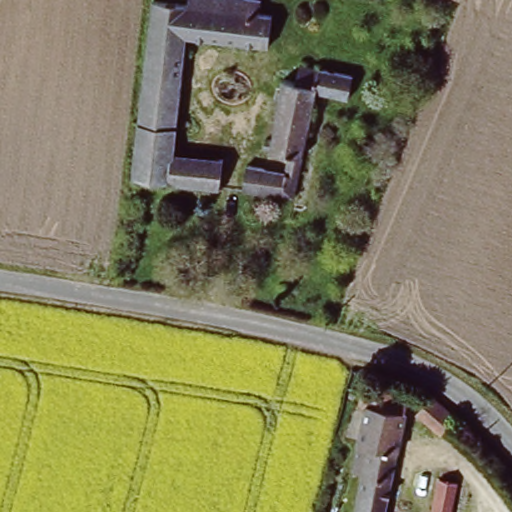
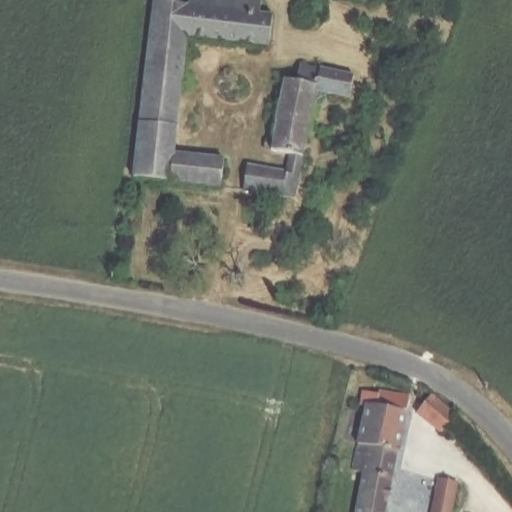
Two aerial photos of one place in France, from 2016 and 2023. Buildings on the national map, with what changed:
unchanged [(148,0),(179,0),(183,0),(184,0),(255,0),(254,10),(267,12),(264,44),(182,34),(168,149),(218,154),(214,184),(128,175),(148,0)]
unchanged [(245,161),(284,166),(286,149),(268,146),(285,60),(353,74),(349,96),(315,89),(292,195),(242,189),(245,161)]
unchanged [(376,392),(405,399),(381,512),(352,512),(361,472),(349,469),(365,394),(376,392)]
unchanged [(412,413),(427,396),(451,416),(436,433),(412,413)]
unchanged [(438,478),(455,481),(448,512),(431,512),(438,478)]

